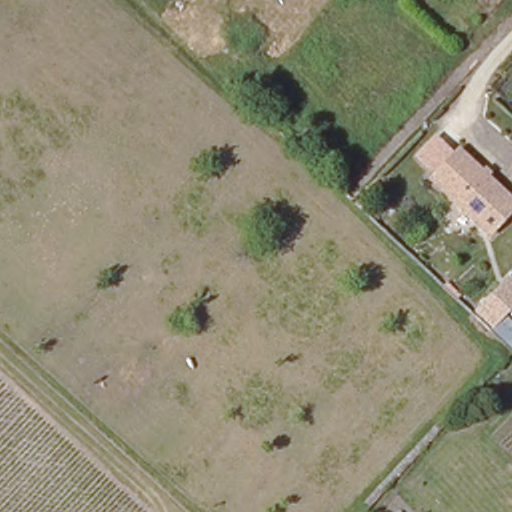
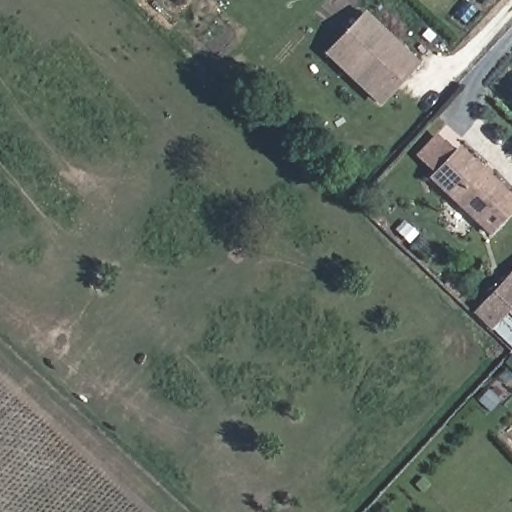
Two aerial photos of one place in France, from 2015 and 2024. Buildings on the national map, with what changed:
new [(377,106),(322,54),(363,11),(419,63),(377,106)]
unchanged [(512,193),(512,216),(496,233),(434,180),(443,172),(463,149),(512,193)]
unchanged [(509,312),(512,316),(512,347),(471,311),(509,272),(512,275),(512,309),(509,312)]

